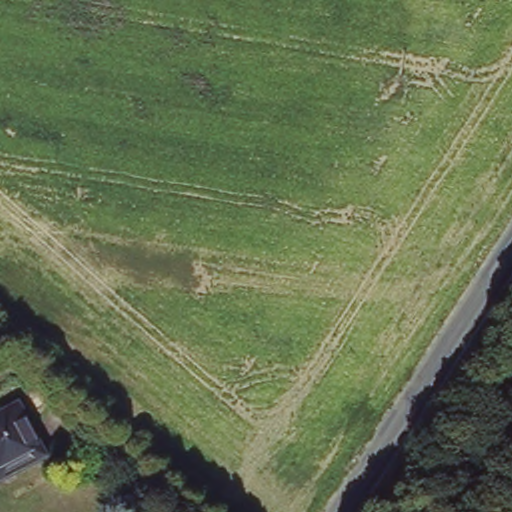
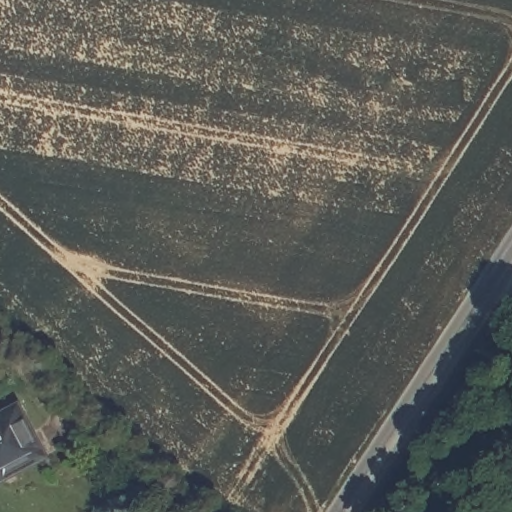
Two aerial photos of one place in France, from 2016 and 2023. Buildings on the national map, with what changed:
unchanged [(19,400),(46,454),(0,474),(0,408),(19,400)]

